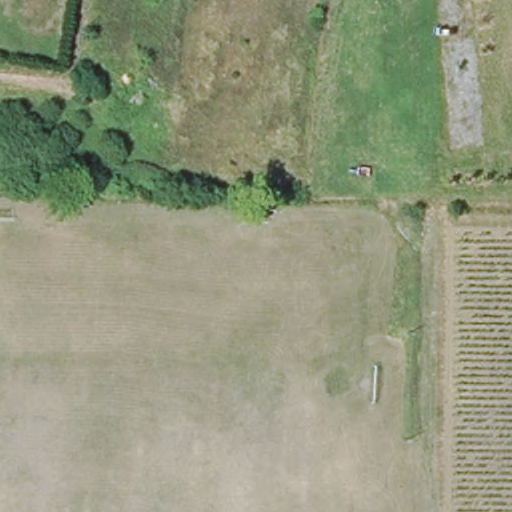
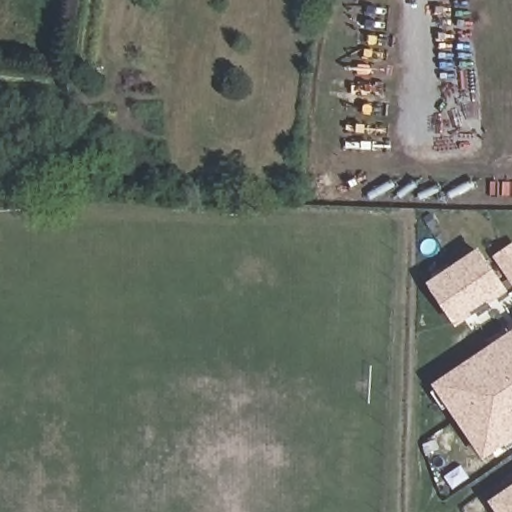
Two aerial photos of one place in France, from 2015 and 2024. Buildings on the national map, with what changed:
new [(512,244),(512,280),(497,255),(512,244)]
new [(482,249),(512,291),(512,292),(460,327),(429,283),(482,249)]
new [(512,333),(512,441),(485,459),(433,384),(512,333)]
new [(512,488),(512,512),(498,512),(491,502),(512,488)]

